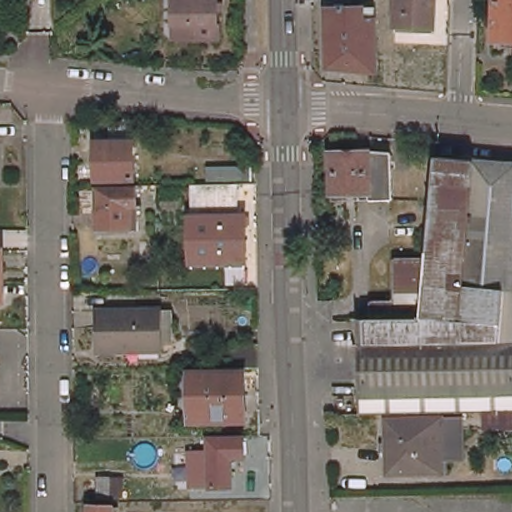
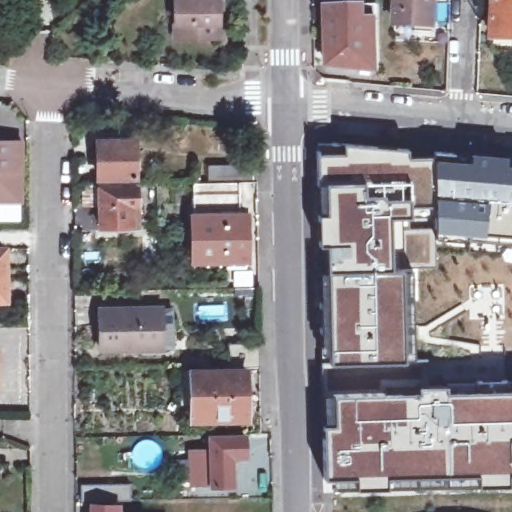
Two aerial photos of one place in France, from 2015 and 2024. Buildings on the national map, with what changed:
unchanged [(179,0),(223,0),(223,22),(224,37),(197,38),(180,38),(180,23),(179,0)]
unchanged [(439,0),(438,24),(400,22),(402,0),(439,0)]
unchanged [(496,0),(512,0),(512,47),(493,46),(496,0)]
unchanged [(382,73),(336,69),(332,10),(380,7),(382,73)]
unchanged [(144,176),(109,176),(110,137),(145,138),(144,176)]
new [(0,203),(0,138),(23,139),(22,203),(0,203)]
new [(409,150),(409,156),(432,156),(433,150),(512,158),(512,238),(433,228),(433,200),(408,203),(408,215),(388,215),(389,270),(402,269),(402,359),(425,358),(420,387),(444,386),(444,391),(512,388),(512,484),(507,483),(354,486),(324,488),(323,478),(320,422),(319,355),(319,271),(327,270),(325,244),(317,245),(317,212),(316,152),(315,140),(345,143),(409,150)]
demolished [(394,152),(393,199),(332,199),(330,151),(370,150),(394,152)]
demolished [(365,312),(378,311),(380,299),(382,294),(385,290),(400,289),(400,252),(406,248),(433,250),(444,152),(512,157),(512,335),(365,338),(365,312)]
unchanged [(182,180),(182,165),(193,166),(193,180),(182,180)]
unchanged [(208,177),(208,165),(252,165),(252,177),(208,177)]
unchanged [(108,180),(109,183),(147,185),(148,203),(141,203),(140,225),(109,224),(109,203),(94,202),(95,180),(108,180)]
unchanged [(238,181),(238,211),(245,211),(245,259),(191,258),(191,212),(194,213),(194,181),(238,181)]
unchanged [(7,296),(0,296),(0,247),(8,247),(7,296)]
unchanged [(129,352),(105,351),(105,345),(106,311),(170,312),(168,345),(168,352),(129,352)]
demolished [(365,338),(512,335),(512,405),(365,408),(365,338)]
unchanged [(239,353),(263,352),(263,363),(263,375),(238,375),(239,353)]
unchanged [(249,424),(195,423),(195,379),(250,379),(249,424)]
demolished [(450,464),(394,466),(392,411),(449,410),(450,464)]
unchanged [(239,483),(217,482),(218,436),(252,436),(252,455),(240,455),(239,483)]
new [(218,446),(217,480),(187,485),(187,449),(218,446)]
unchanged [(103,499),(103,480),(128,481),(128,499),(103,499)]
unchanged [(118,512),(95,512),(95,506),(118,508),(118,512)]

